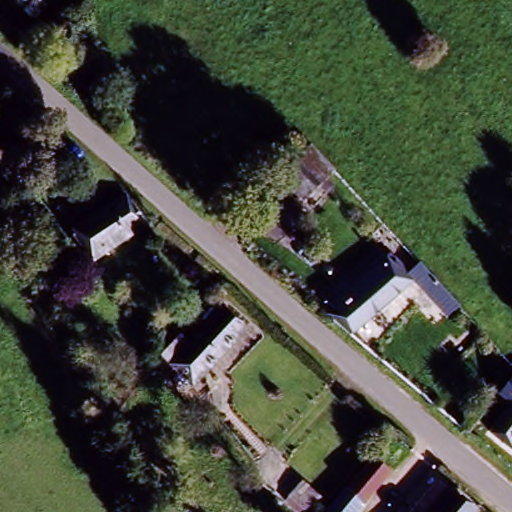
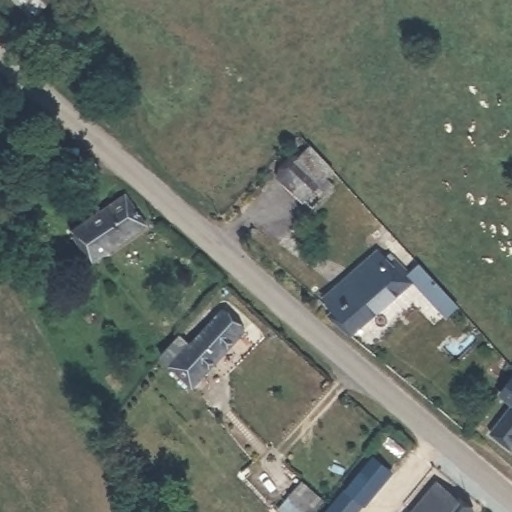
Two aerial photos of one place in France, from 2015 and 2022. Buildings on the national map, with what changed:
unchanged [(330,174),(307,192),(287,171),(310,149),(330,174)]
unchanged [(136,231),(101,259),(79,230),(118,202),(136,231)]
unchanged [(324,290),(369,252),(385,268),(363,288),(357,283),(347,292),(349,298),(338,307),(324,290)]
unchanged [(338,307),(349,298),(347,292),(357,283),(363,288),(385,268),(396,259),(412,279),(408,283),(345,334),(325,317),(338,307)]
unchanged [(460,308),(446,322),(408,283),(412,279),(425,269),(460,308)]
unchanged [(245,325),(193,391),(163,368),(213,302),(245,325)]
unchanged [(512,377),(512,403),(500,393),(512,377)]
unchanged [(488,432),(512,403),(512,449),(511,450),(488,432)]
unchanged [(389,474),(356,512),(323,512),(370,460),(389,474)]
unchanged [(457,500),(448,512),(423,512),(442,487),(457,500)]
unchanged [(471,512),(448,512),(457,500),(471,512)]

